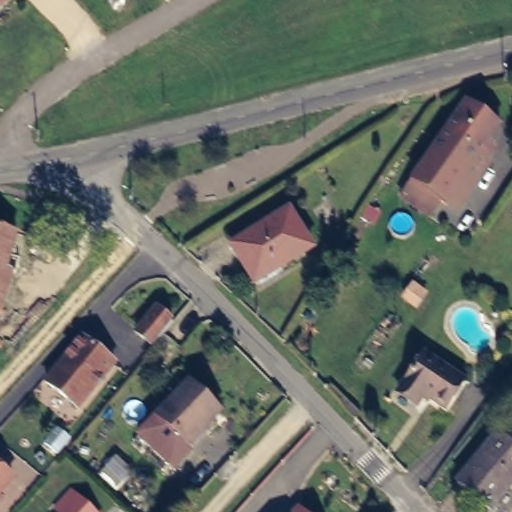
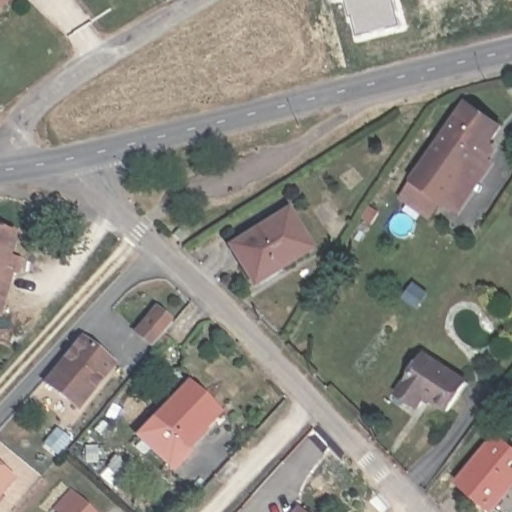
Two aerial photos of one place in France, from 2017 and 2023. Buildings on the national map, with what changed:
unchanged [(0,0),(11,0),(0,10),(0,0)]
unchanged [(121,2),(111,8),(107,0),(120,0),(121,2)]
demolished [(143,0),(148,0),(153,8),(142,13),(137,3),(143,0)]
new [(405,30),(361,42),(355,22),(353,22),(348,1),(332,4),(331,0),(397,0),(405,30)]
unchanged [(503,125),(492,142),(498,146),(494,152),(487,147),(450,202),(445,198),(435,213),(407,193),(416,179),(414,177),(467,99),(503,125)]
unchanged [(313,252),(252,291),(227,252),(288,213),(313,252)]
unchanged [(0,225),(15,229),(0,284),(0,225)]
unchanged [(160,353),(150,344),(149,345),(132,332),(150,307),(168,319),(168,320),(160,331),(170,339),(160,353)]
unchanged [(115,364),(81,410),(50,385),(83,338),(115,364)]
unchanged [(446,410),(424,395),(419,402),(399,387),(423,351),(467,379),(446,410)]
unchanged [(229,397),(197,431),(202,436),(184,455),(145,419),(164,400),(165,400),(196,367),(229,397)]
unchanged [(496,512),(491,512),(462,487),(502,440),(512,448),(512,493),(496,512)]
unchanged [(0,473),(13,484),(0,502),(0,473)]
unchanged [(70,492),(92,512),(56,512),(55,511),(70,492)]

